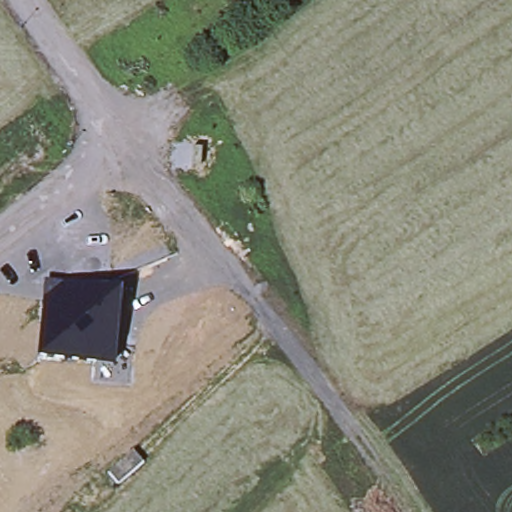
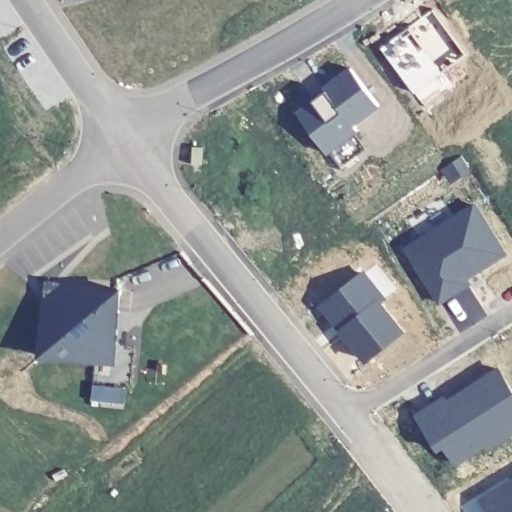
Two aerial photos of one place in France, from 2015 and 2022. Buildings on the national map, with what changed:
new [(432,12),(465,56),(440,76),(448,87),(423,107),(379,49),(432,12)]
new [(326,93),(323,89),(352,71),(378,111),(353,129),(358,138),(326,159),(292,115),(326,93)]
unchanged [(202,147),(201,165),(191,164),(192,146),(202,147)]
new [(475,204),(507,257),(466,281),(470,287),(438,307),(401,249),(475,204)]
new [(363,272),(385,301),(380,305),(403,335),(363,366),(336,332),(317,308),(363,272)]
unchanged [(95,360),(40,355),(46,298),(47,282),(63,284),(120,289),(115,345),(113,362),(95,360)]
new [(445,396),(447,400),(499,370),(512,391),(512,435),(485,452),(484,447),(451,467),(442,450),(435,454),(412,417),(445,396)]
new [(483,512),(477,502),(512,481),(512,512),(483,512)]

